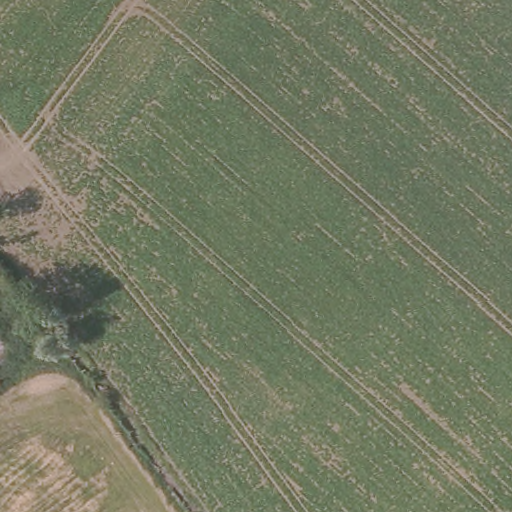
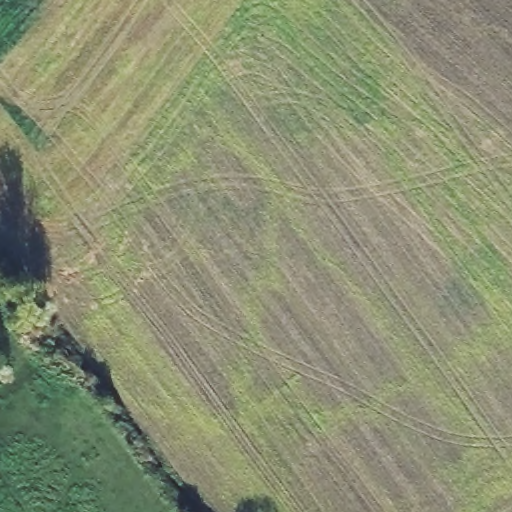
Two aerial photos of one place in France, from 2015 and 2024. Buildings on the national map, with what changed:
[]

